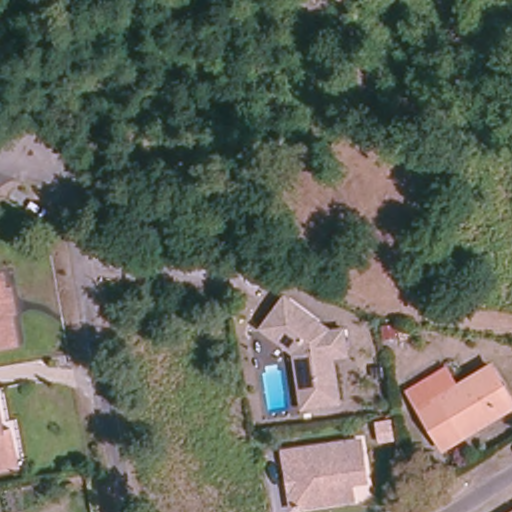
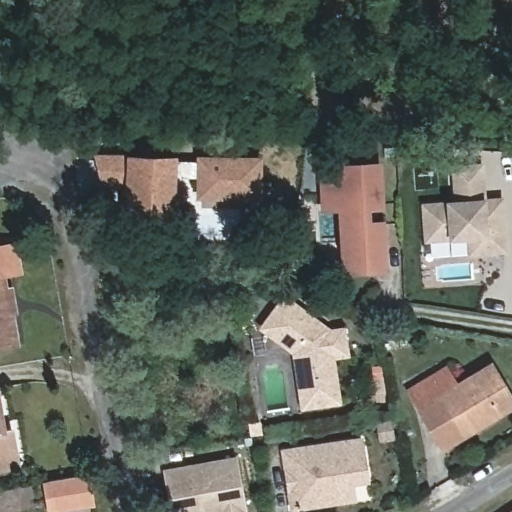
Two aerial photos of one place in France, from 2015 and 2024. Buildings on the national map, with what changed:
new [(173,161),(173,165),(203,164),(203,161),(258,162),(257,195),(203,194),(203,174),(173,174),(172,215),(132,215),(133,184),(106,184),(101,160),(173,161)]
new [(371,210),(371,222),(385,221),(387,272),(340,275),(337,211),(321,212),(319,165),(382,161),(384,209),(371,210)]
new [(483,164),(485,198),(503,197),(507,252),(467,255),(466,240),(449,241),(425,242),(421,204),(445,201),(455,200),(452,166),(483,164)]
new [(23,272),(3,280),(0,281),(0,244),(17,241),(23,272)]
unchanged [(0,281),(3,280),(6,293),(11,292),(16,319),(10,321),(16,350),(0,353),(0,281)]
unchanged [(284,296),(330,330),(345,328),(349,360),(336,362),(342,405),(300,411),(291,355),(259,331),(284,296)]
unchanged [(403,320),(404,332),(383,335),(380,317),(403,320)]
unchanged [(412,392),(451,370),(462,387),(495,367),(512,395),(512,411),(466,438),(442,399),(423,410),(412,392)]
unchanged [(0,389),(1,389),(8,432),(16,431),(20,454),(22,468),(0,472),(0,389)]
unchanged [(442,399),(466,438),(447,450),(423,410),(442,399)]
unchanged [(369,502),(305,512),(288,512),(278,453),(359,440),(369,502)]
new [(163,472),(186,468),(186,471),(196,470),(196,466),(231,460),(241,512),(171,512),(168,496),(163,472)]
new [(91,507),(64,512),(47,512),(42,485),(86,477),(91,507)]

